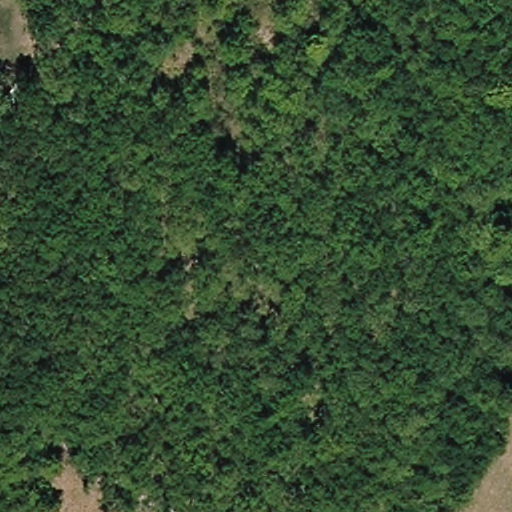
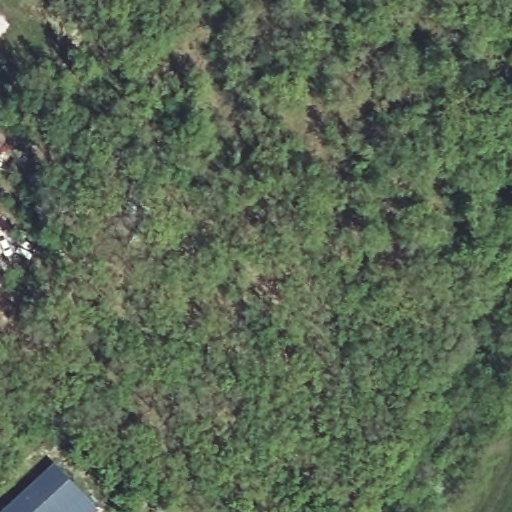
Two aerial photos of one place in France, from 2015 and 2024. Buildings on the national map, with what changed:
new [(58,461),(89,493),(69,512),(3,512),(58,461)]

